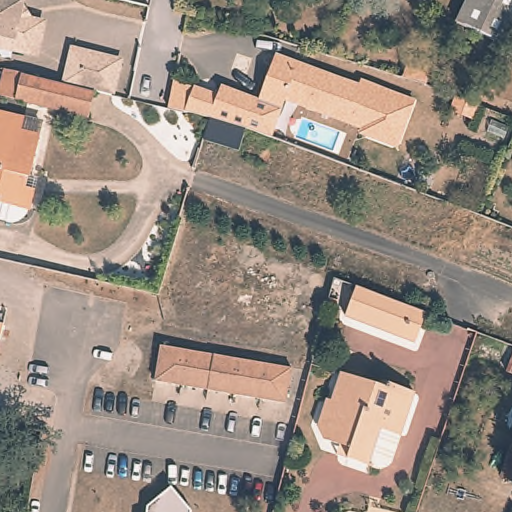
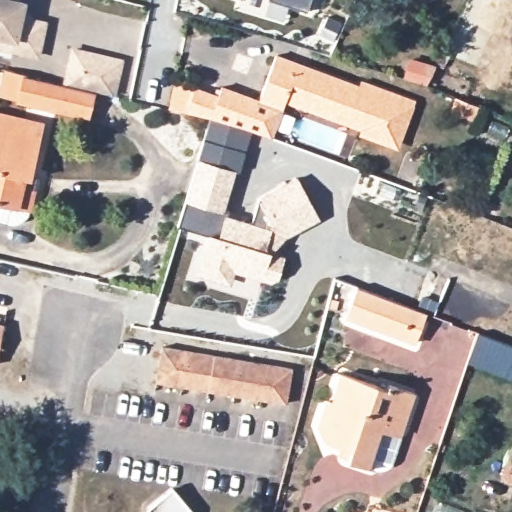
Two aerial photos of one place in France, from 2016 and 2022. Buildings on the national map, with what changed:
unchanged [(3,36),(0,31),(0,28),(1,24),(0,24),(0,0),(31,0),(29,8),(54,13),(49,33),(48,45),(22,40),(3,36)]
new [(308,12),(271,0),(312,0),(308,12)]
unchanged [(455,18),(464,0),(512,0),(512,21),(502,41),(455,18)]
unchanged [(98,91),(70,84),(78,48),(125,60),(117,95),(98,91)]
unchanged [(203,143),(210,119),(185,112),(169,109),(175,80),(194,87),(218,96),(221,86),(259,100),(276,54),(359,86),(361,81),(415,100),(399,142),(392,145),(366,135),(363,128),(364,126),(347,120),(346,124),(285,102),(271,138),(246,130),(239,152),(203,143)]
unchanged [(402,78),(408,59),(434,66),(425,85),(402,78)]
unchanged [(3,95),(9,70),(29,74),(70,84),(98,91),(92,117),(23,100),(3,95)]
unchanged [(0,109),(40,118),(26,184),(33,186),(26,209),(31,211),(29,213),(28,214),(27,215),(25,216),(23,217),(21,217),(18,217),(13,216),(0,213),(0,109)]
new [(206,233),(178,226),(198,158),(237,170),(224,213),(252,222),(258,197),(298,177),(321,220),(288,238),(272,252),(285,256),(276,281),(272,283),(234,272),(231,285),(197,275),(206,233)]
unchanged [(401,333),(345,312),(356,283),(426,309),(420,324),(415,338),(401,333)]
unchanged [(0,343),(0,325),(4,325),(0,343)]
unchanged [(260,394),(234,390),(208,385),(181,381),(155,376),(161,341),(187,346),(213,350),(240,355),(266,359),(291,363),(286,398),(260,394)]
unchanged [(507,372),(512,359),(512,374),(507,372)]
unchanged [(340,440),(324,435),(318,422),(327,395),(332,397),(341,369),(387,384),(388,379),(414,388),(400,430),(391,457),(390,458),(389,459),(389,460),(388,461),(387,461),(386,462),(384,463),(383,463),(382,463),(380,464),(379,464),(378,464),(372,462),(347,454),(336,450),(340,440)]
unchanged [(35,456),(24,454),(27,439),(38,441),(35,456)]
unchanged [(501,472),(512,442),(512,476),(501,472)]
unchanged [(172,482),(192,506),(192,512),(147,512),(147,502),(172,482)]

